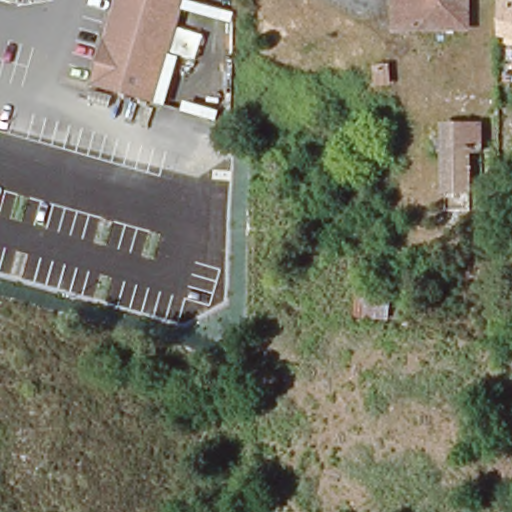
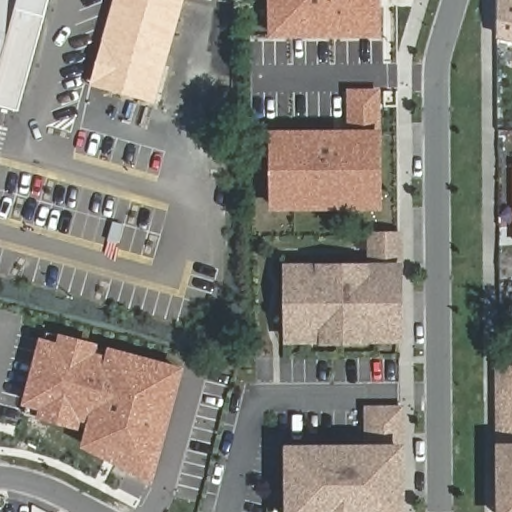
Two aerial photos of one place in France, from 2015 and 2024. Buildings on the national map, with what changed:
new [(18,0),(49,0),(44,18),(17,112),(0,107),(0,0),(7,0),(18,3),(18,0)]
unchanged [(7,0),(18,0),(18,3),(7,0)]
unchanged [(89,90),(98,58),(113,0),(128,0),(112,61),(104,94),(89,90)]
unchanged [(120,64),(112,61),(128,0),(182,0),(163,74),(120,64)]
new [(273,0),(378,0),(378,23),(378,33),(353,33),(309,34),(273,34),(273,24),(273,0)]
demolished [(464,0),(464,32),(407,32),(394,32),(394,0),(464,0)]
unchanged [(512,0),(512,40),(498,38),(499,0),(512,0)]
unchanged [(154,107),(104,94),(112,61),(120,64),(163,74),(154,107)]
new [(275,194),(274,134),(351,133),(351,90),(379,90),(380,193),(380,206),(362,205),(293,206),(275,207),(275,194)]
demolished [(442,209),(441,141),(482,141),(482,169),(472,169),(472,209),(442,209)]
new [(313,336),(293,336),(293,323),(292,265),(327,265),(327,266),(369,266),(369,264),(377,264),(377,258),(377,232),(404,232),(404,257),(404,264),(404,323),(404,335),(384,335),(367,335),(331,336),(313,336)]
new [(47,332),(64,337),(64,339),(63,338),(60,347),(44,343),(47,332)]
new [(132,469),(115,460),(106,456),(86,445),(90,429),(41,416),(44,407),(26,402),(43,342),(60,347),(63,338),(94,347),(111,352),(170,367),(180,370),(174,391),(154,463),(150,478),(132,469)]
new [(512,367),(512,389),(507,389),(507,367),(512,367)]
new [(507,505),(507,436),(507,430),(507,397),(512,397),(512,512),(507,512),(507,505)]
new [(44,407),(41,416),(43,416),(42,418),(25,413),(28,403),(44,407)]
new [(296,504),(295,445),(330,445),(330,446),(372,446),(371,407),(408,405),(407,503),(407,512),(296,512),(296,504)]

